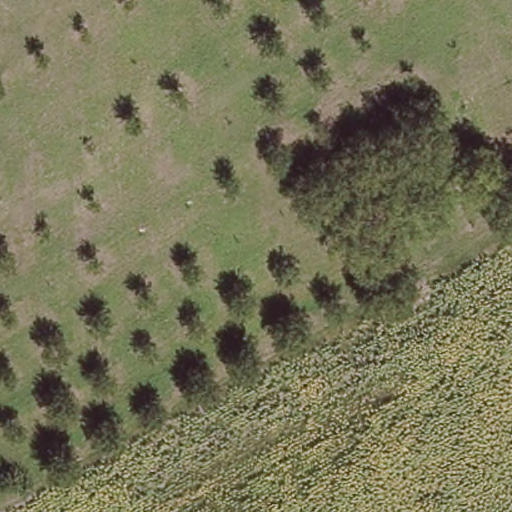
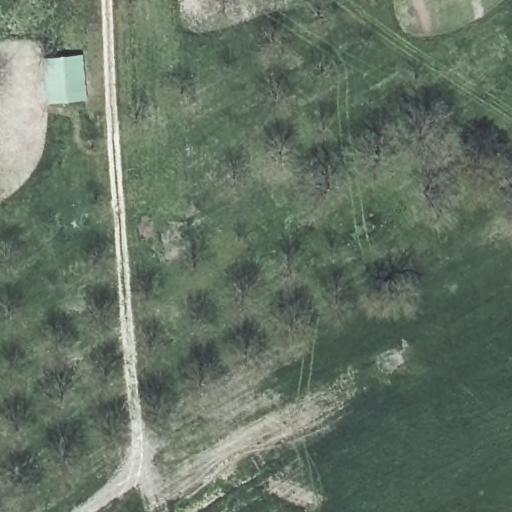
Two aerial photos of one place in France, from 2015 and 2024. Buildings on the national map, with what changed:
new [(83,53),(87,99),(47,103),(44,57),(83,53)]

